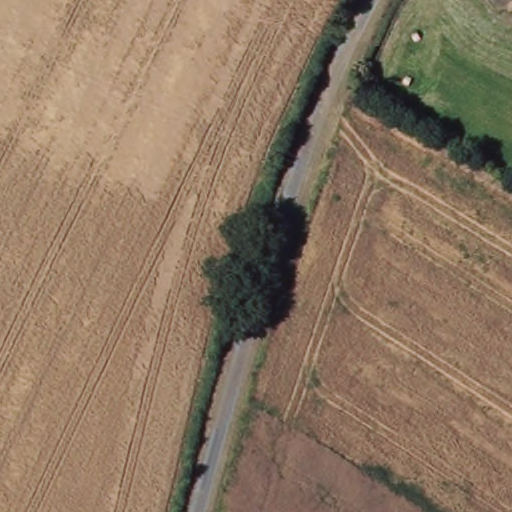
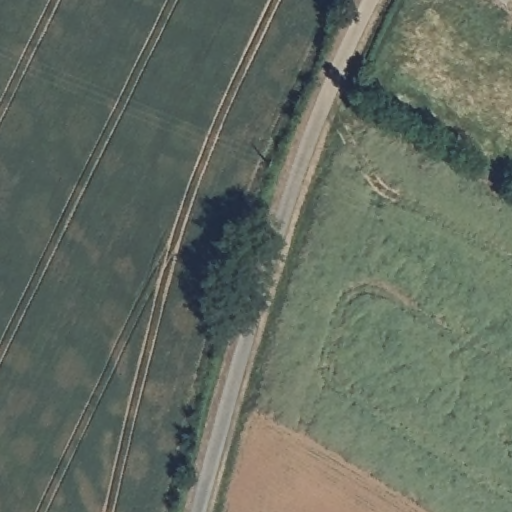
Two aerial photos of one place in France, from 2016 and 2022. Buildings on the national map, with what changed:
unchanged [(498,0),(507,0),(504,5),(498,0)]

